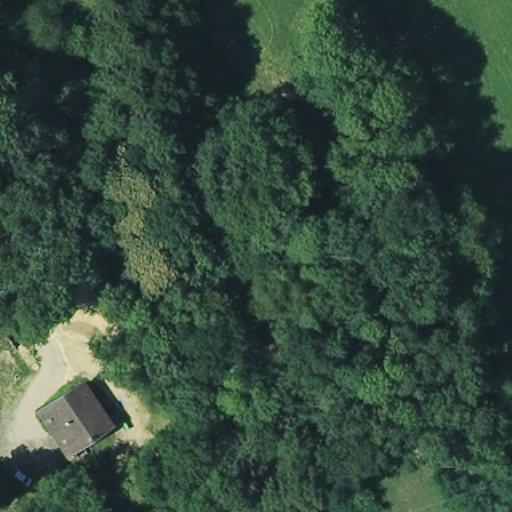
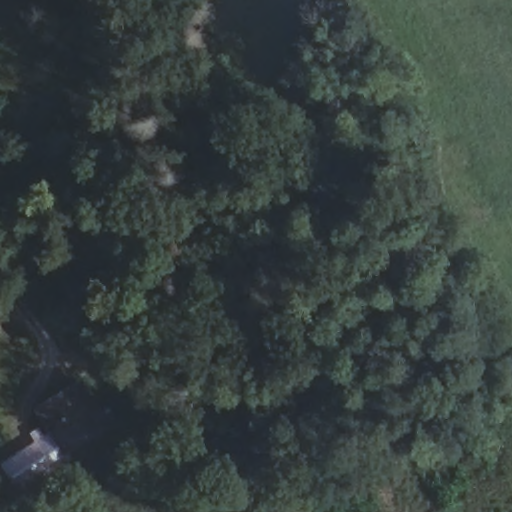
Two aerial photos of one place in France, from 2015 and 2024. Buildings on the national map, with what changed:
unchanged [(1,5),(0,2),(0,0),(15,0),(1,5)]
unchanged [(106,430),(68,456),(43,418),(81,393),(106,430)]

